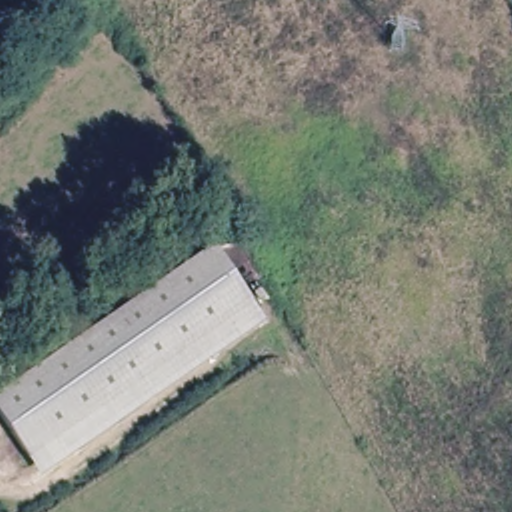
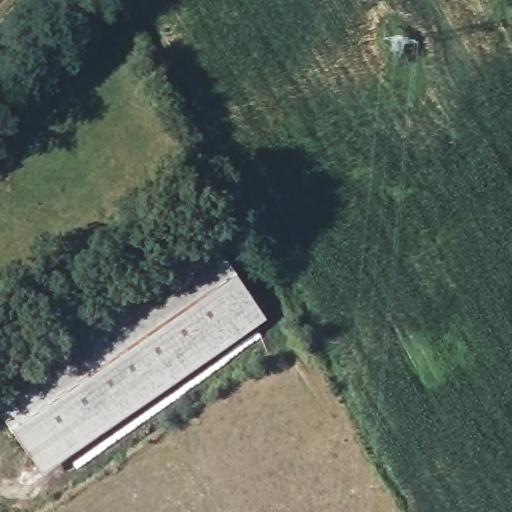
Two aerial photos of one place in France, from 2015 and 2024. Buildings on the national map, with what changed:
unchanged [(264,323),(38,477),(0,422),(0,393),(211,244),(264,323)]

